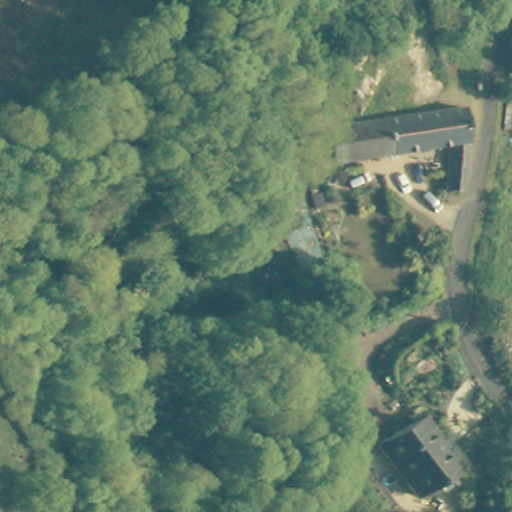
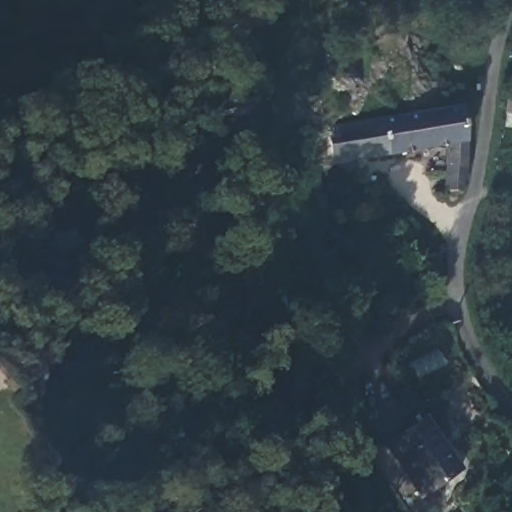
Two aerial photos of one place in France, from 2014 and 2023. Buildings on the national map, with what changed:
unchanged [(422,115),(462,110),(469,149),(465,177),(458,196),(445,191),(447,146),(424,150),(422,115)]
unchanged [(330,129),(422,115),(424,150),(380,159),(335,166),(330,129)]
unchanged [(416,495),(382,444),(425,415),(459,466),(416,495)]

